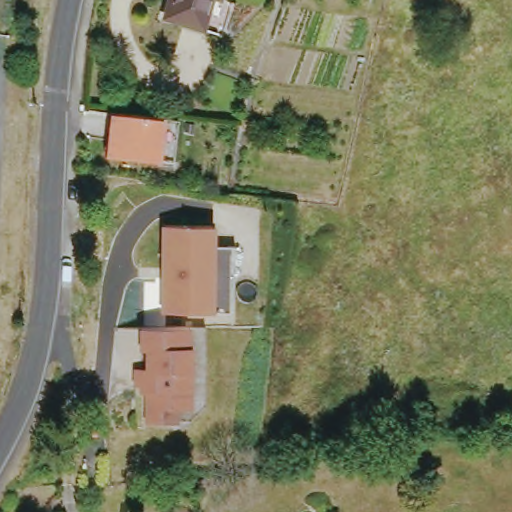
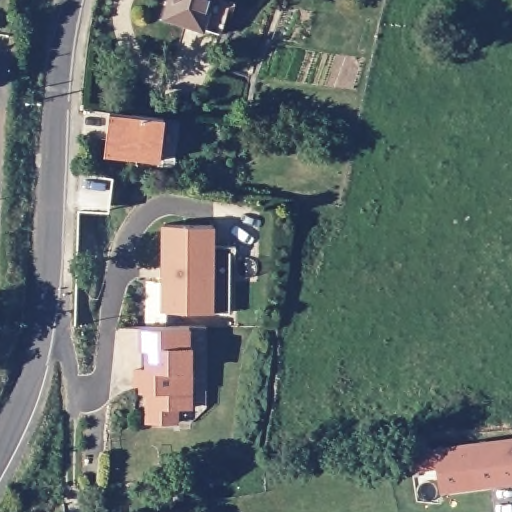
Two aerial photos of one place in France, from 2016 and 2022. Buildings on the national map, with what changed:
unchanged [(171,20),(175,0),(213,0),(208,27),(171,20)]
unchanged [(164,160),(108,152),(113,112),(168,118),(164,160)]
unchanged [(217,244),(236,246),(233,310),(216,309),(216,313),(161,312),(163,226),(218,227),(217,244)]
unchanged [(135,373),(142,373),(146,372),(148,372),(148,352),(141,352),(141,336),(141,332),(148,331),(193,331),(193,351),(196,351),(196,411),(182,411),(182,426),(152,427),(151,396),(145,396),(143,396),(136,396),(135,373)]
new [(512,484),(441,495),(434,447),(512,437),(512,484)]

